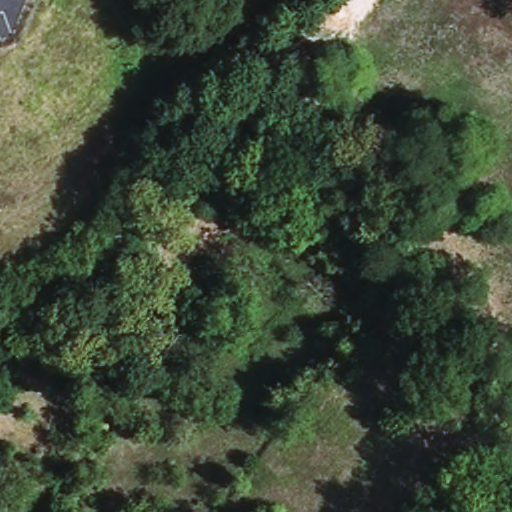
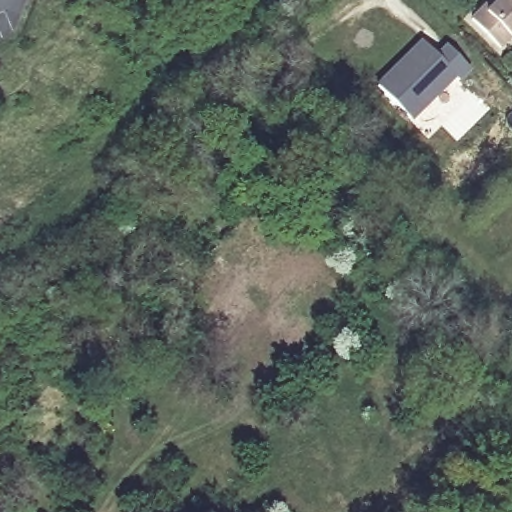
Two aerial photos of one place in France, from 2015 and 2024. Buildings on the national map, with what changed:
new [(512,42),(511,40),(501,51),(471,19),(488,0),(512,0),(512,42)]
new [(433,56),(445,46),(470,72),(458,84),(453,79),(411,122),(373,86),(419,43),(433,56)]

